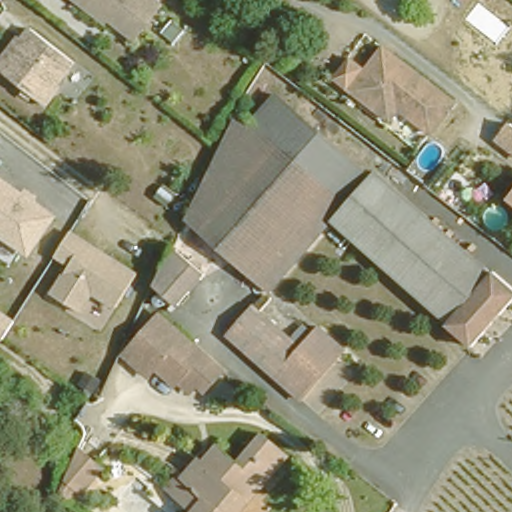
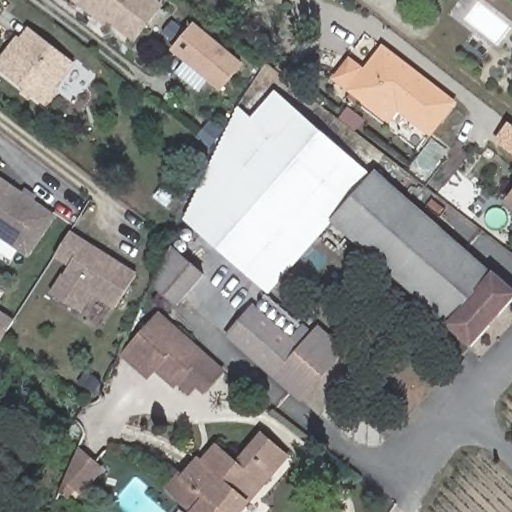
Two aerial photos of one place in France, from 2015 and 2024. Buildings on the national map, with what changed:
unchanged [(80,0),(158,0),(138,26),(134,31),(108,13),(104,18),(80,0)]
unchanged [(69,52),(51,76),(51,84),(40,98),(0,67),(0,45),(12,30),(16,32),(26,19),(69,52)]
new [(190,27),(240,67),(219,92),(169,52),(190,27)]
unchanged [(453,96),(430,126),(398,103),(389,114),(358,90),(333,71),(348,52),(364,64),(382,41),(453,96)]
unchanged [(367,163),(398,190),(486,266),(488,263),(512,283),(512,288),(468,339),(443,317),(444,314),(380,260),(327,214),(265,285),(182,214),(197,182),(233,106),(245,116),(269,88),(363,168),(367,163)]
unchanged [(512,154),(498,144),(510,128),(512,129),(512,154)]
unchanged [(23,193),(25,189),(35,194),(33,200),(57,215),(30,256),(0,236),(0,178),(23,193)]
unchanged [(512,194),(512,214),(502,206),(512,194)]
unchanged [(138,272),(115,311),(93,296),(81,314),(49,294),(67,265),(55,257),(71,231),(138,272)]
unchanged [(205,269),(177,298),(154,277),(174,240),(205,269)]
unchanged [(291,335),(304,323),(313,331),(320,323),(345,346),(299,396),(228,331),(255,302),(291,335)]
unchanged [(218,364),(200,383),(194,379),(186,387),(174,376),(169,380),(151,362),(143,369),(121,347),(158,309),(218,364)]
unchanged [(179,502),(162,487),(173,475),(188,458),(192,461),(207,445),(229,464),(255,433),(273,449),(280,455),(240,502),(231,512),(185,512),(187,509),(179,502)]
unchanged [(86,494),(68,486),(62,497),(54,493),(64,471),(72,452),(99,464),(89,486),(86,494)]

